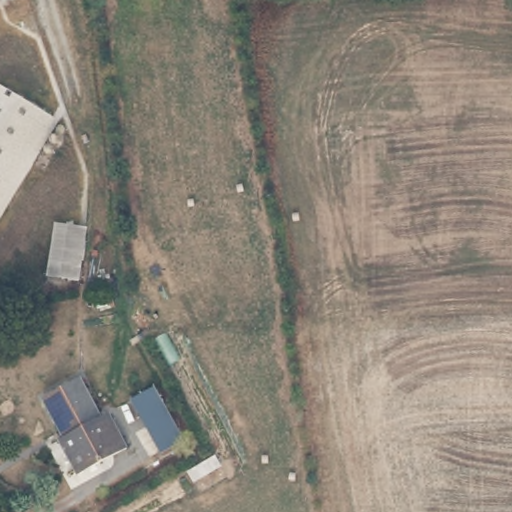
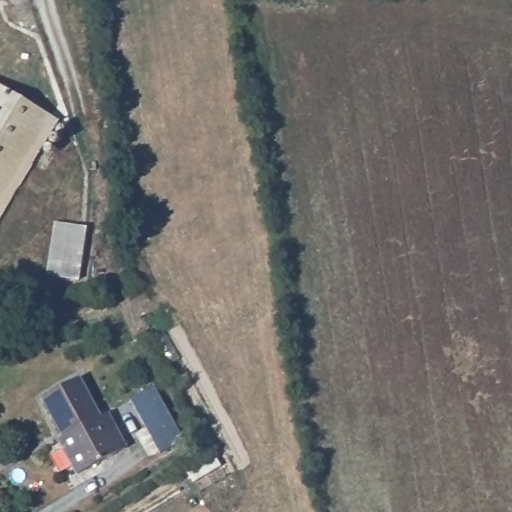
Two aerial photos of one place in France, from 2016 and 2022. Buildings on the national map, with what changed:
unchanged [(0,0),(18,0),(1,4),(0,0)]
unchanged [(0,217),(0,84),(54,113),(0,217)]
unchanged [(74,275),(48,273),(52,222),(79,224),(74,275)]
unchanged [(74,377),(98,419),(105,414),(127,451),(79,479),(55,440),(61,437),(36,399),(74,377)]
unchanged [(154,384),(184,439),(159,452),(130,399),(154,384)]

